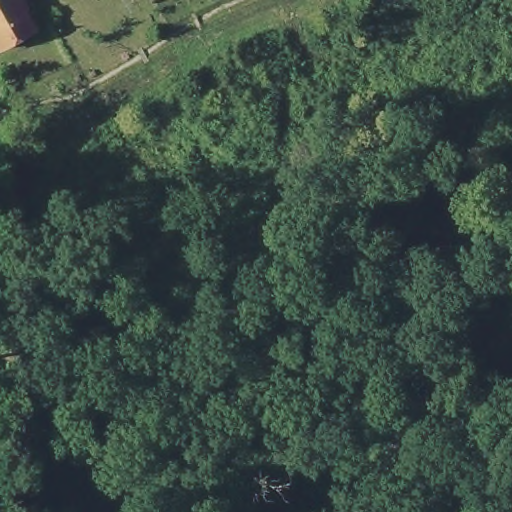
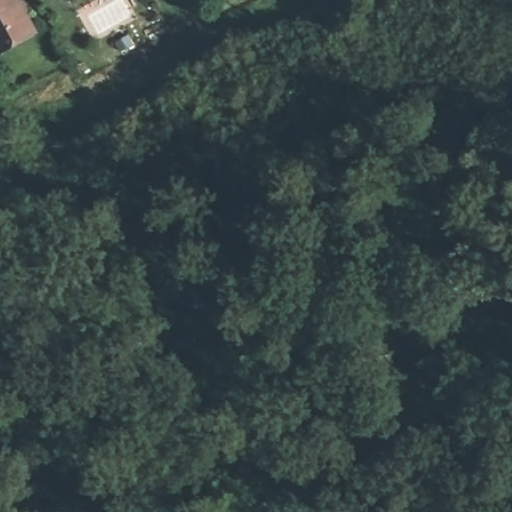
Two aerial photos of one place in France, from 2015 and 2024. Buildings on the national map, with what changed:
unchanged [(44,26),(11,45),(9,41),(0,46),(0,0),(30,0),(44,26)]

